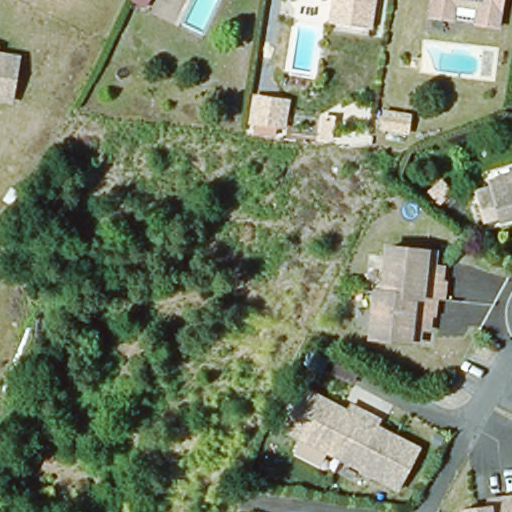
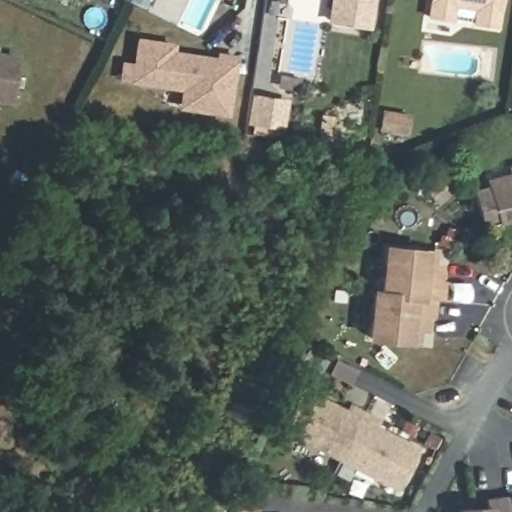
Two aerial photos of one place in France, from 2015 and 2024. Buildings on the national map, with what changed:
unchanged [(83,0),(84,0),(84,1),(83,0)]
unchanged [(334,20),(336,0),(374,0),(371,25),(334,20)]
unchanged [(482,28),(484,13),(479,5),(469,4),(462,9),(460,24),(437,21),(440,0),(509,0),(505,31),(482,28)]
new [(175,51),(216,56),(217,51),(239,55),(231,117),(178,110),(181,91),(129,84),(117,83),(121,61),(133,63),(137,38),(176,43),(175,51)]
unchanged [(0,102),(0,58),(21,61),(13,105),(0,102)]
unchanged [(288,100),(284,131),(248,126),(252,96),(288,100)]
unchanged [(410,126),(408,144),(382,140),(385,123),(410,126)]
unchanged [(490,183),(512,177),(512,220),(501,224),(490,183)]
unchanged [(444,284),(442,302),(435,301),(383,296),(387,251),(435,255),(433,270),(445,272),(444,284)]
unchanged [(420,331),(418,346),(371,341),(375,296),(383,296),(435,301),(433,319),(432,332),(420,331)]
unchanged [(349,415),(352,409),(366,416),(363,422),(342,463),(284,434),(305,392),(349,415)]
unchanged [(381,423),(377,429),(422,451),(401,493),(342,463),(363,422),(366,416),(381,423)]
unchanged [(486,501),(512,497),(512,512),(458,512),(458,511),(486,507),(486,501)]

